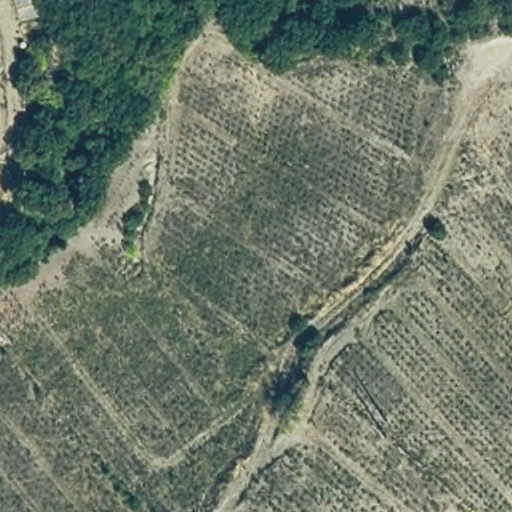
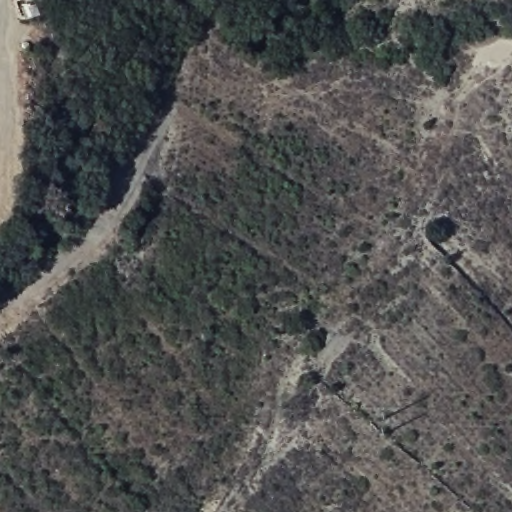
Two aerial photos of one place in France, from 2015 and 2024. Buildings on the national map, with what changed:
unchanged [(15,18),(11,0),(37,0),(38,13),(15,18)]

